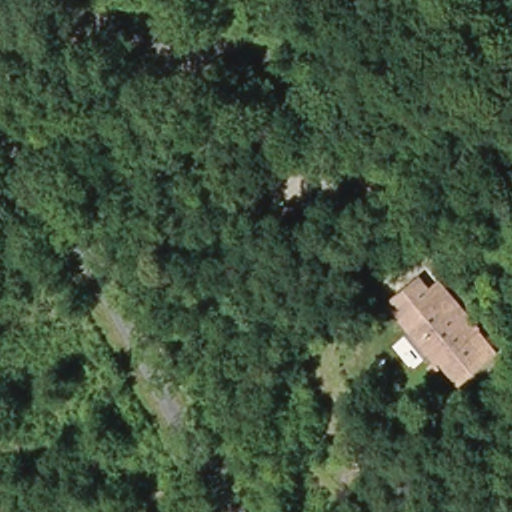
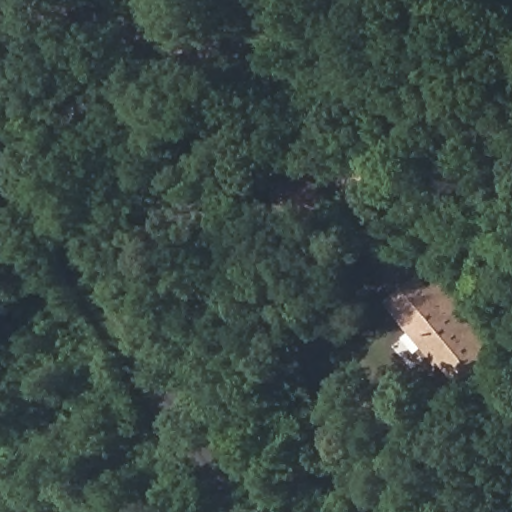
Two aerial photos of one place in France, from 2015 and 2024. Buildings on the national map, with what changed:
unchanged [(402,154),(383,178),(364,160),(383,138),(402,154)]
unchanged [(422,346),(420,347),(393,314),(400,308),(424,287),(434,298),(446,288),(456,299),(486,333),(476,342),(489,358),(469,374),(443,343),(437,349),(430,355),(422,346)]

